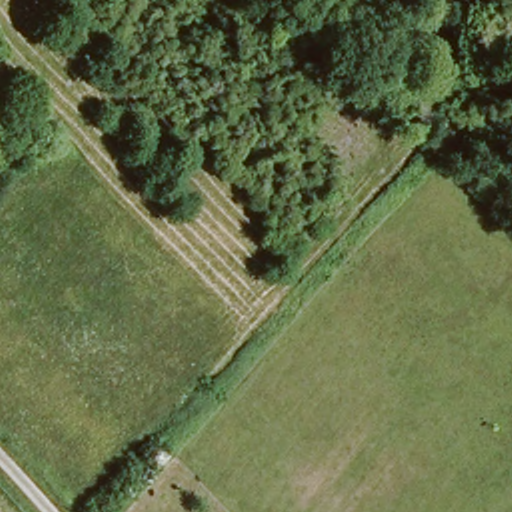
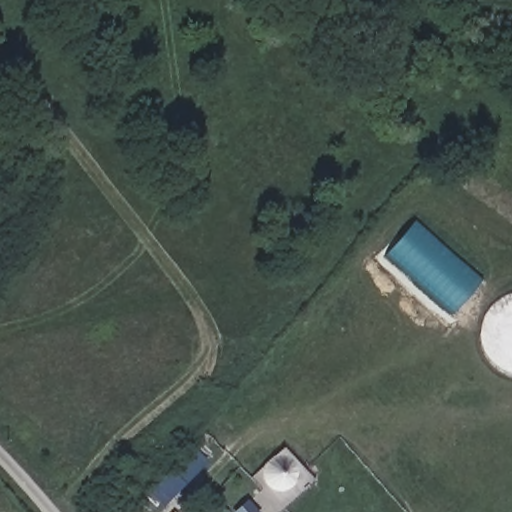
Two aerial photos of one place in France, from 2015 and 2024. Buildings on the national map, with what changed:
new [(451,315),(383,255),(413,220),(482,281),(451,315)]

